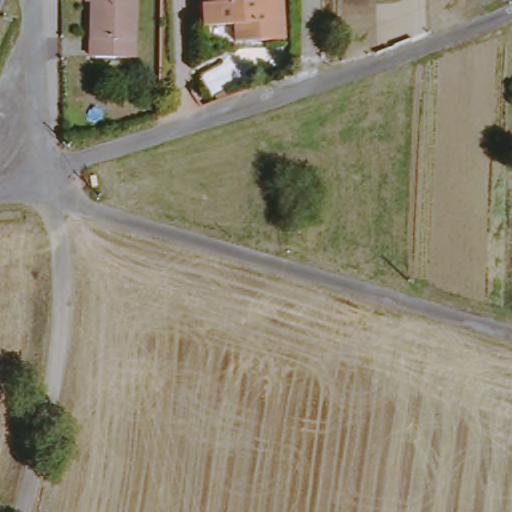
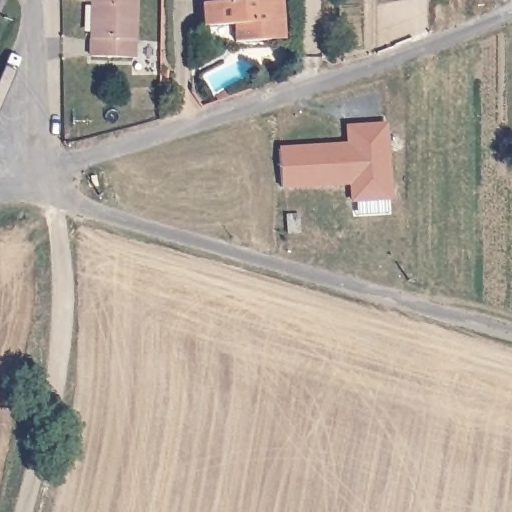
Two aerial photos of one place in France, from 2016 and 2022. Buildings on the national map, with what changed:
unchanged [(140,43),(136,43),(136,61),(95,59),(96,4),(100,3),(100,0),(141,0),(140,43)]
unchanged [(287,42),(273,44),(238,46),(237,28),(208,31),(206,9),(205,0),(269,0),(270,2),(285,1),(287,42)]
new [(353,201),(350,186),(281,190),(280,145),(346,141),(346,121),(388,121),(395,197),(353,201)]
unchanged [(285,209),(295,207),(296,226),(285,227),(285,209)]

